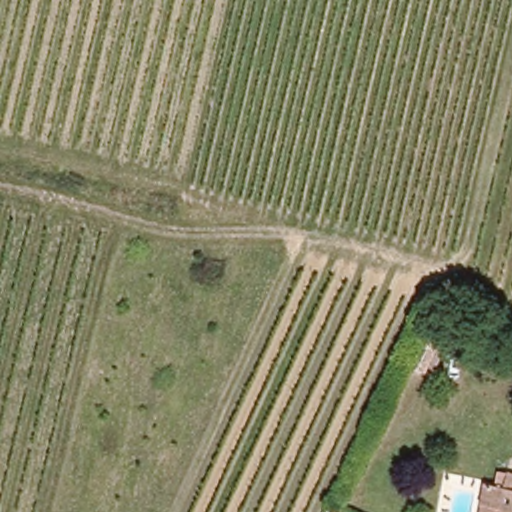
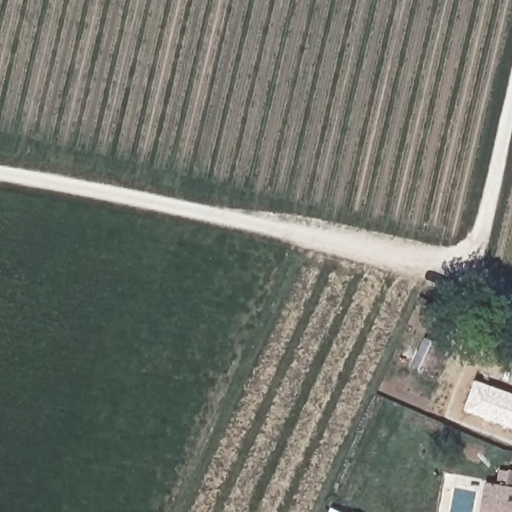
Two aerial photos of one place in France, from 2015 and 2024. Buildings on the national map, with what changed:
new [(474,380),(512,394),(512,429),(464,411),(474,380)]
unchanged [(500,480),(500,465),(512,468),(512,512),(481,512),(486,477),(500,480)]

